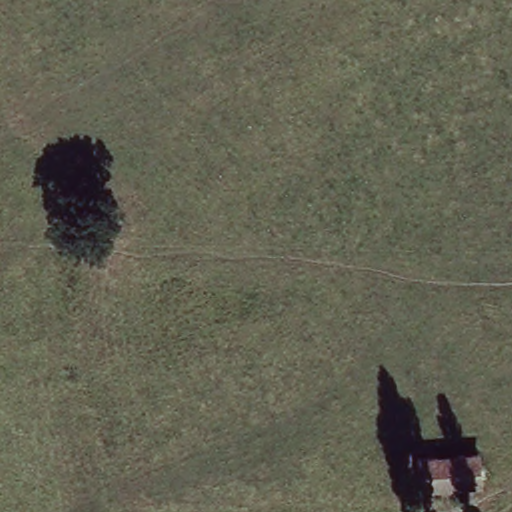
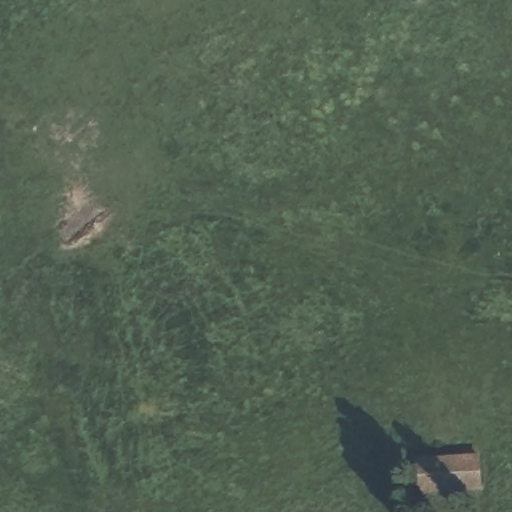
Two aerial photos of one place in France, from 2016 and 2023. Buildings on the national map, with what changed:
unchanged [(473,450),(475,482),(413,486),(412,454),(473,450)]

